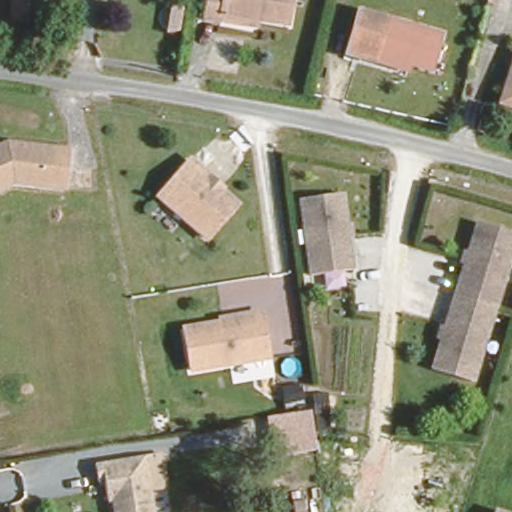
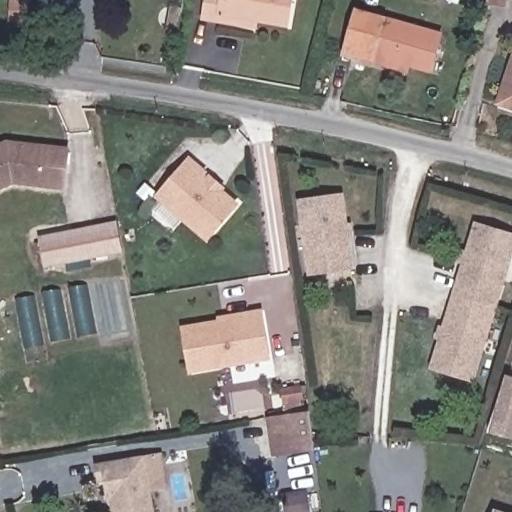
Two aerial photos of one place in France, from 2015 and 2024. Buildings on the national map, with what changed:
unchanged [(204,14),(206,0),(291,0),(287,21),(257,16),(255,25),(219,16),(204,14)]
unchanged [(473,0),(479,0),(478,1),(473,0)]
unchanged [(372,64),(344,55),(356,11),(440,34),(430,70),(408,65),(406,73),(372,64)]
unchanged [(512,65),(512,108),(500,104),(512,65)]
unchanged [(47,179),(14,175),(0,182),(0,142),(9,137),(70,143),(69,160),(67,180),(47,179)]
unchanged [(200,176),(234,210),(203,240),(156,196),(190,161),(203,174),(200,176)]
unchanged [(308,280),(299,202),(341,198),(350,275),(308,280)]
new [(119,223),(124,252),(67,262),(47,266),(42,237),(61,234),(119,223)]
unchanged [(512,235),(512,248),(493,310),(454,298),(476,224),(512,235)]
unchanged [(471,383),(432,371),(454,298),(493,310),(471,383)]
unchanged [(268,360),(191,373),(184,331),(261,318),(268,360)]
new [(506,374),(512,376),(512,439),(489,433),(506,374)]
unchanged [(273,457),(266,416),(310,411),(315,450),(273,457)]
unchanged [(93,467),(143,459),(151,512),(113,512),(111,502),(106,503),(102,482),(96,483),(93,467)]
unchanged [(495,511),(496,512),(494,512),(495,511)]

